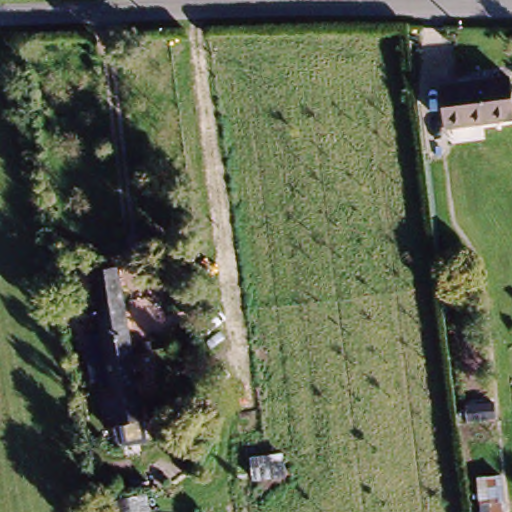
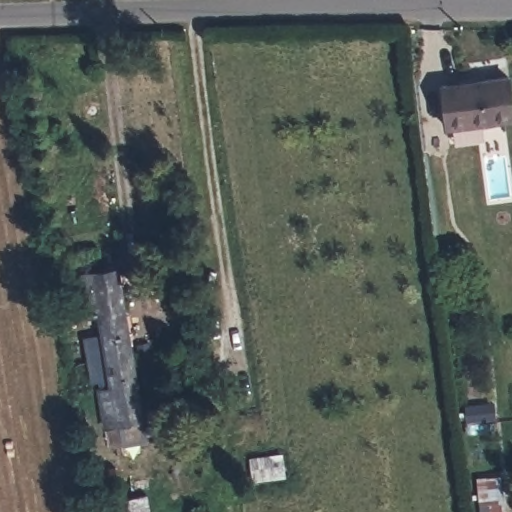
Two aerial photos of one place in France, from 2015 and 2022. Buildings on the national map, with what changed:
unchanged [(443,85),(512,85),(512,126),(443,126),(443,85)]
unchanged [(103,318),(95,319),(90,270),(122,266),(130,313),(103,318)]
unchanged [(138,369),(144,412),(111,418),(103,361),(108,359),(103,318),(130,313),(138,369)]
unchanged [(104,498),(146,494),(151,512),(106,512),(104,498)]
unchanged [(486,502),(503,501),(504,512),(488,512),(486,502)]

